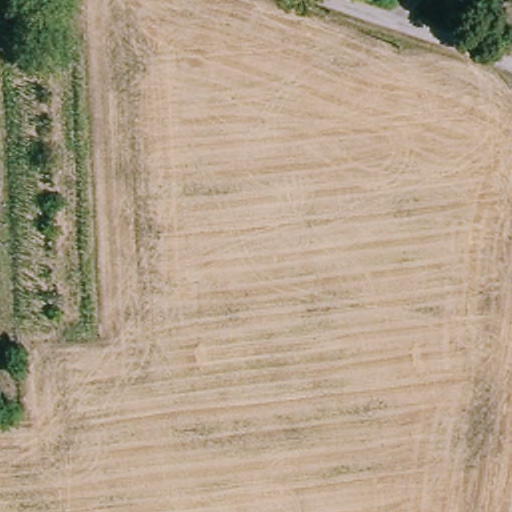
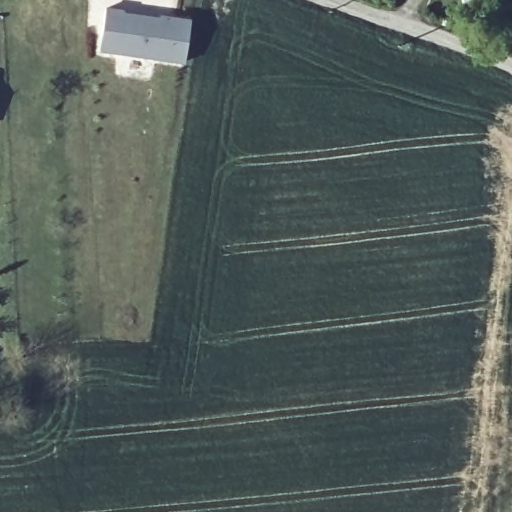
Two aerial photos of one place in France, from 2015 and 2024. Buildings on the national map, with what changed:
new [(104,10),(122,13),(122,15),(150,20),(158,21),(158,18),(189,23),(182,65),(114,54),(98,52),(100,37),(104,10)]

